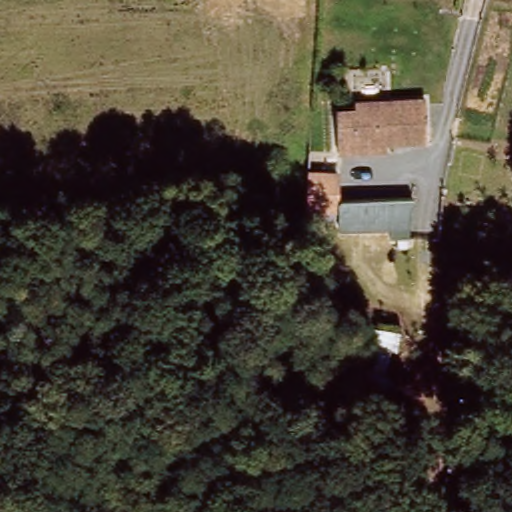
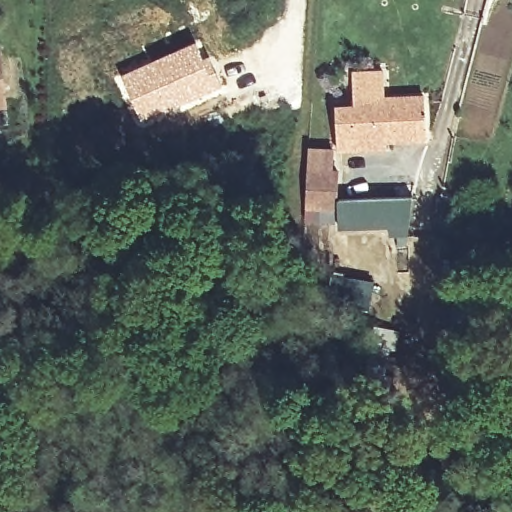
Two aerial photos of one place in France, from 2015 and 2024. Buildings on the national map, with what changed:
new [(194,40),(222,87),(174,113),(140,126),(118,74),(194,40)]
new [(1,46),(6,107),(0,108),(0,46),(1,46)]
unchanged [(361,146),(342,146),(342,103),(360,102),(362,92),(425,90),(425,134),(390,134),(389,146),(361,146)]
unchanged [(310,167),(343,170),(338,211),(307,208),(310,167)]
unchanged [(411,195),(407,232),(387,233),(386,225),(338,227),(338,211),(340,199),(411,195)]
unchanged [(512,240),(509,259),(444,250),(451,214),(512,222),(512,240)]

